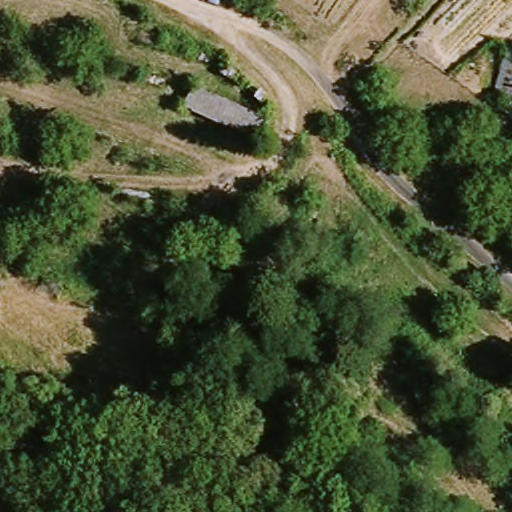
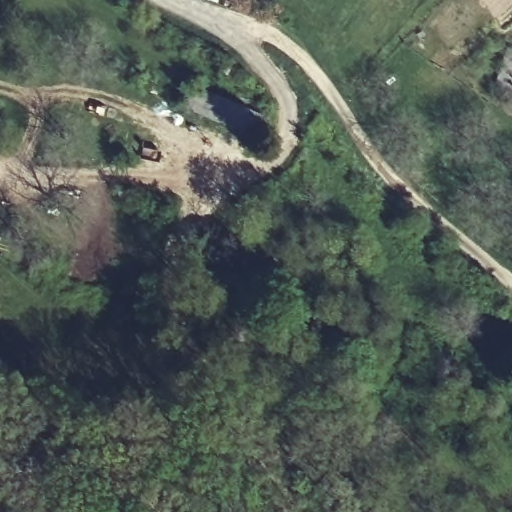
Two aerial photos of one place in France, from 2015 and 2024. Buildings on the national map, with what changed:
unchanged [(512,50),(512,90),(502,87),(512,50)]
unchanged [(266,140),(190,107),(201,84),(276,117),(266,140)]

